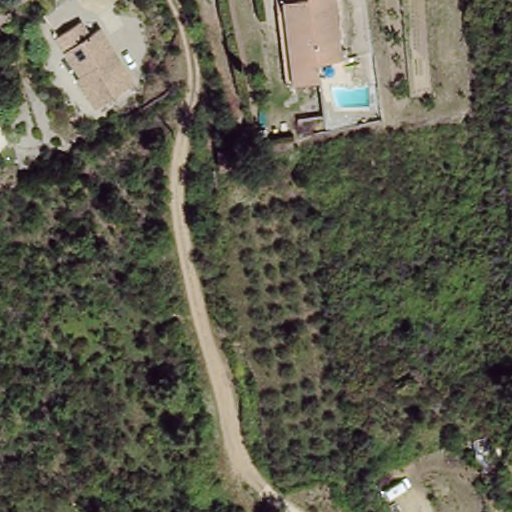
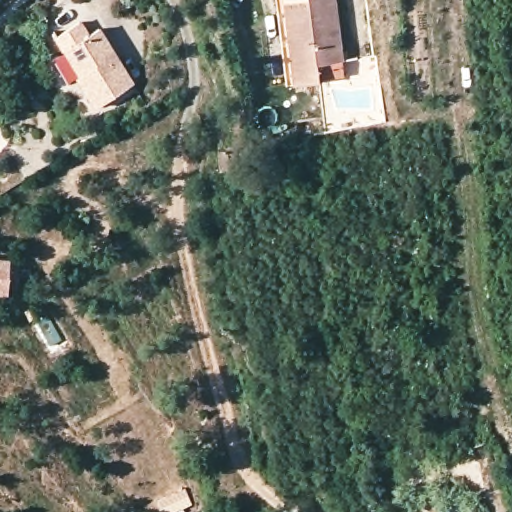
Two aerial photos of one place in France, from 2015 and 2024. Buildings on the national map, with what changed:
unchanged [(279,0),(330,0),(338,59),(312,63),(314,82),(290,85),(281,86),(272,11),(280,10),(279,0)]
unchanged [(87,40),(98,33),(132,88),(96,110),(77,80),(79,79),(64,55),(55,40),(78,26),(87,40)]
unchanged [(239,147),(240,169),(221,171),(220,150),(239,147)]
new [(0,257),(10,258),(8,295),(0,294),(0,257)]

